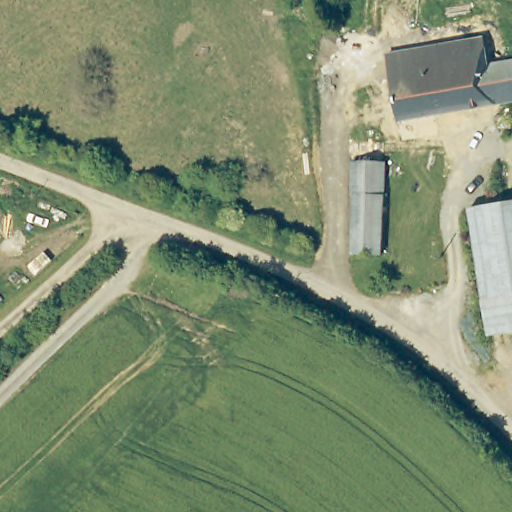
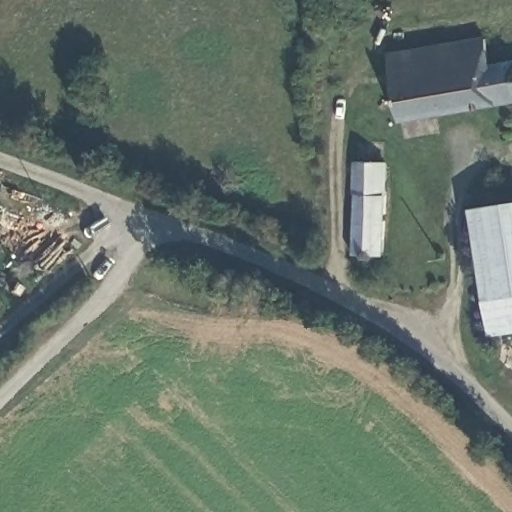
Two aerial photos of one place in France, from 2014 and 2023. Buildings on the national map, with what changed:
unchanged [(389,55),(485,38),(490,66),(512,62),(512,99),(401,120),(389,55)]
unchanged [(379,163),(377,254),(350,253),(348,162),(379,163)]
unchanged [(439,213),(512,204),(512,330),(456,338),(439,213)]

